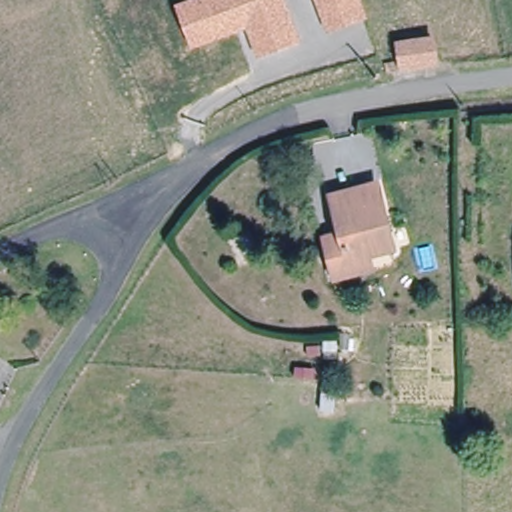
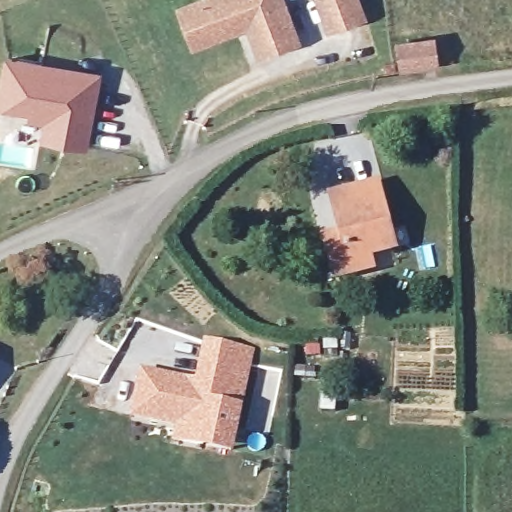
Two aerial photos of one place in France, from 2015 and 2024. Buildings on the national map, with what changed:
unchanged [(257,59),(246,29),(191,50),(175,4),(186,0),(286,0),(301,44),(257,59)]
unchanged [(326,32),(315,0),(361,0),(368,19),(326,32)]
unchanged [(438,35),(441,64),(398,69),(396,42),(438,35)]
new [(42,66),(77,72),(97,76),(84,146),(64,142),(68,122),(32,116),(34,109),(0,102),(8,59),(42,66)]
unchanged [(348,273),(321,276),(318,232),(334,231),(331,191),(377,186),(384,245),(361,247),(363,272),(348,273)]
new [(196,379),(204,338),(254,349),(244,406),(234,455),(173,442),(176,427),(130,417),(140,367),(196,379)]

